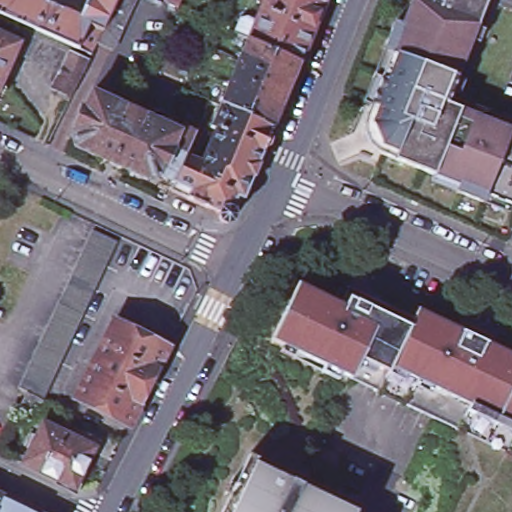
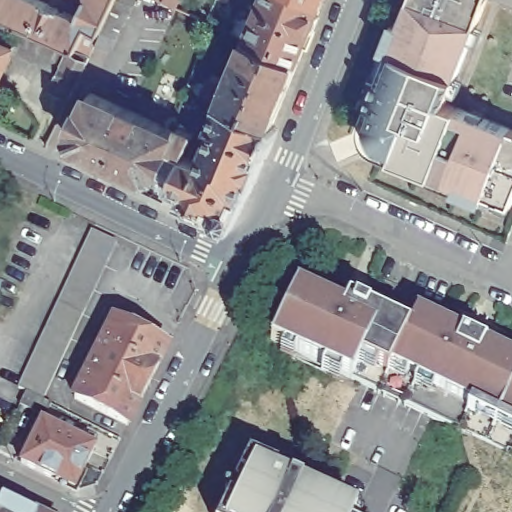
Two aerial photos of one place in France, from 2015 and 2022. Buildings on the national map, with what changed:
unchanged [(28,27),(0,15),(0,0),(38,0),(63,12),(85,21),(95,0),(161,0),(168,3),(170,0),(185,0),(182,9),(180,9),(169,34),(147,24),(132,17),(128,25),(116,52),(102,46),(97,57),(93,64),(77,99),(60,90),(70,66),(21,46),(28,27)]
unchanged [(304,64),(255,42),(262,24),(262,22),(267,10),(271,0),(322,0),(328,3),(304,64)]
unchanged [(322,0),(330,0),(328,3),(322,0)]
unchanged [(512,137),(512,213),(486,203),(483,210),(457,199),(460,192),(380,161),(377,159),(372,156),(369,152),(365,147),(363,136),(363,129),(391,59),(384,57),(395,30),(402,32),(414,0),(472,0),(488,7),(447,111),(512,137)]
unchanged [(491,0),(488,7),(472,0),(491,0)]
unchanged [(0,94),(0,36),(21,46),(0,94)]
unchanged [(255,42),(304,64),(278,127),(225,106),(252,41),(255,42)]
unchanged [(117,165),(80,149),(77,137),(82,129),(79,128),(87,110),(90,111),(97,95),(130,110),(127,119),(137,123),(117,165)]
unchanged [(153,182),(117,165),(137,123),(147,127),(150,119),(182,134),(184,129),(200,136),(190,157),(207,165),(220,131),(216,129),(225,107),(225,106),(278,127),(248,201),(246,200),(237,222),(230,224),(228,223),(226,221),(225,218),(225,214),(214,209),(213,210),(192,200),(192,199),(177,192),(180,185),(177,184),(163,177),(153,182)]
unchanged [(125,244),(42,406),(15,395),(90,230),(125,244)]
unchanged [(343,307),(348,297),(412,327),(422,311),(512,354),(512,433),(466,416),(472,405),(392,367),(388,374),(365,362),(358,380),(270,342),(298,287),(343,307)]
unchanged [(177,347),(132,430),(70,401),(112,317),(177,347)]
unchanged [(102,447),(80,496),(20,466),(42,417),(102,447)]
unchanged [(254,466),(351,512),(231,512),(254,466)]
unchanged [(0,492),(39,512),(0,512),(0,492)]

